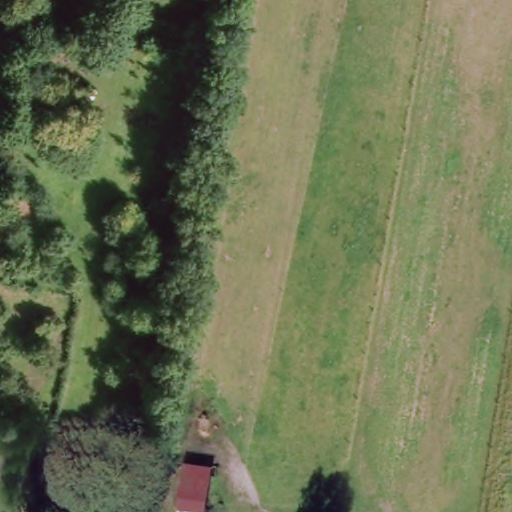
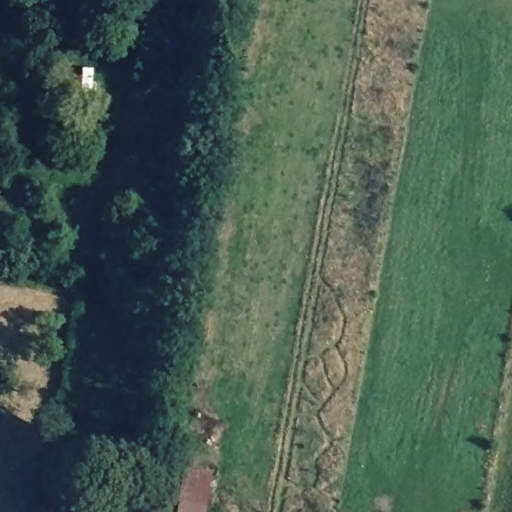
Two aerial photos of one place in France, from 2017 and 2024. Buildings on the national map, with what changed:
unchanged [(210,472),(205,512),(176,512),(182,468),(210,472)]

